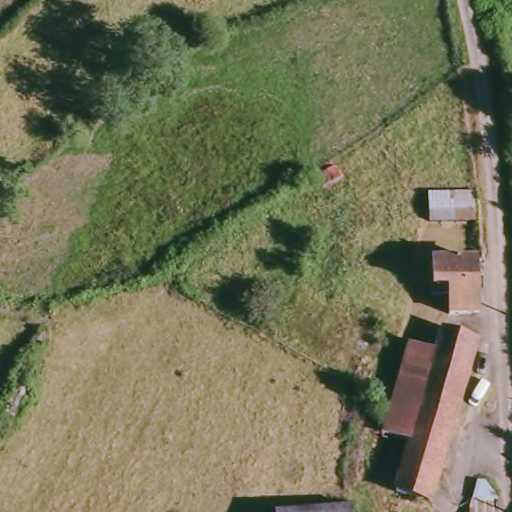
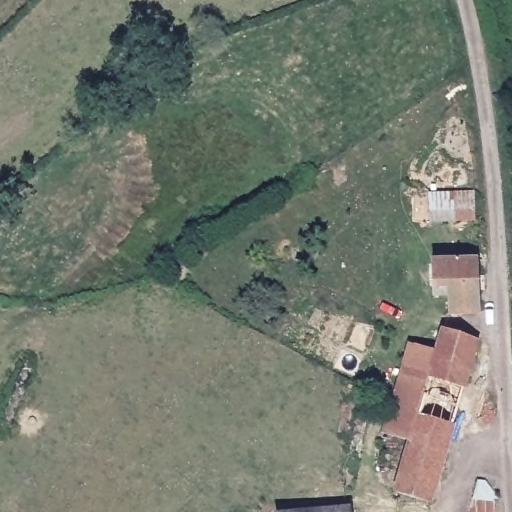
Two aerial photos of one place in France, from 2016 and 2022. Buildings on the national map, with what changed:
unchanged [(434,227),(433,199),(479,197),(480,225),(434,227)]
unchanged [(452,316),(452,298),(436,298),(434,262),(482,261),(482,316),(452,316)]
unchanged [(399,408),(417,345),(444,355),(452,330),(485,343),(460,427),(399,408)]
unchanged [(437,505),(404,495),(418,445),(392,436),(399,408),(460,427),(437,505)]
unchanged [(471,505),(502,503),(503,512),(471,512),(471,505)]
unchanged [(359,506),(359,512),(301,512),(359,506)]

